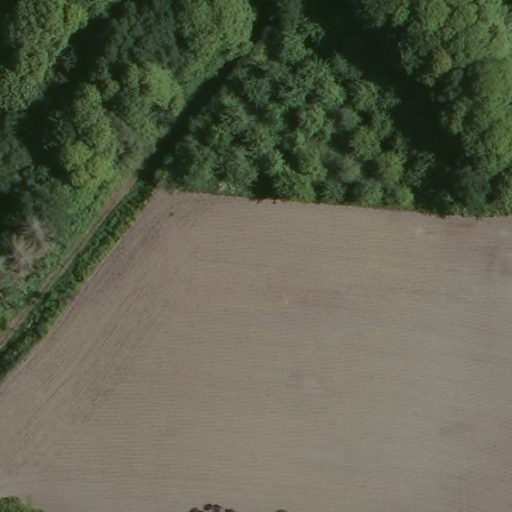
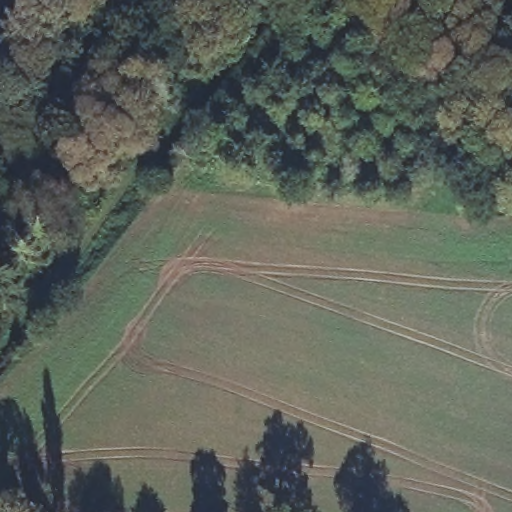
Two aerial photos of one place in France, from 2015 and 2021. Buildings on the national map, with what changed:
[]

